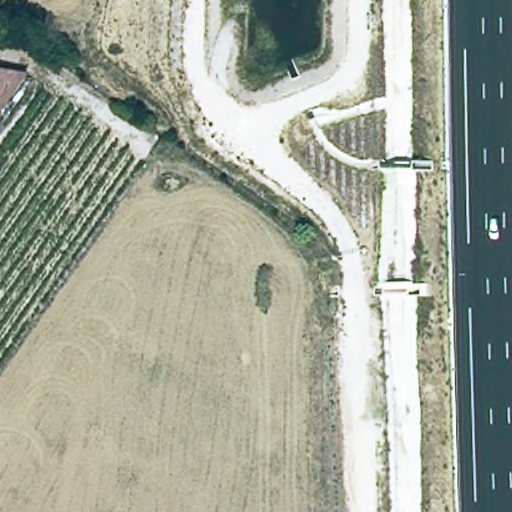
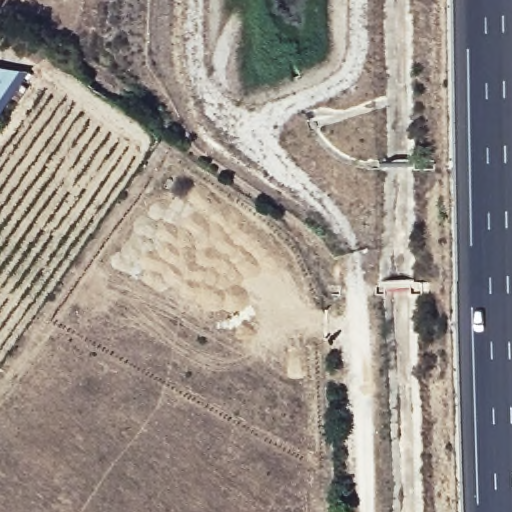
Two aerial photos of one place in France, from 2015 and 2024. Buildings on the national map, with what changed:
unchanged [(0,105),(0,64),(28,66),(0,105)]

